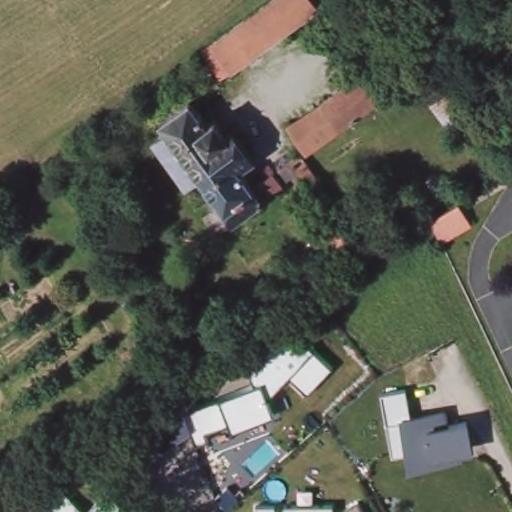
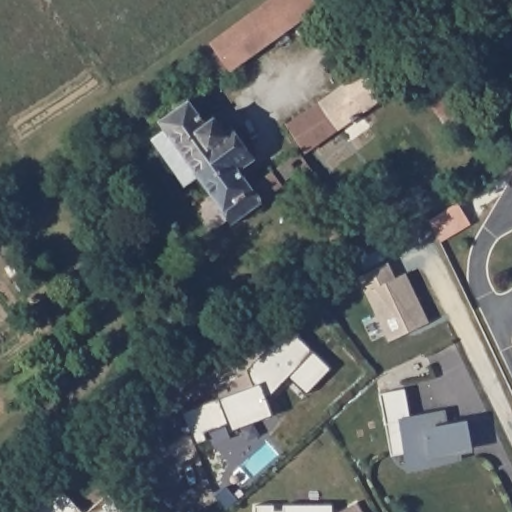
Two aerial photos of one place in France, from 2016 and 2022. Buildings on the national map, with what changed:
unchanged [(264,0),(320,0),(322,2),(229,70),(208,43),(264,0)]
unchanged [(367,66),(386,90),(308,146),(293,124),(367,66)]
unchanged [(436,72),(470,119),(449,136),(417,88),(436,72)]
unchanged [(189,91),(202,109),(212,103),(226,124),(232,120),(242,133),(239,134),(248,148),(233,158),(252,181),(259,174),(268,189),(228,222),(192,174),(183,183),(152,141),(162,135),(149,120),(189,91)]
unchanged [(300,149),(363,231),(368,227),(383,249),(358,267),(280,165),(300,149)]
unchanged [(390,191),(408,213),(386,229),(368,205),(390,191)]
unchanged [(457,196),(470,214),(441,235),(431,215),(457,196)]
new [(388,262),(396,278),(406,273),(429,322),(389,341),(358,276),(388,262)]
unchanged [(189,434),(162,446),(150,445),(140,416),(178,402),(182,414),(221,397),(257,384),(249,366),(290,329),(332,368),(306,393),(290,375),(267,399),(272,414),(231,430),(226,424),(206,430),(209,438),(193,442),(189,434)]
unchanged [(407,387),(411,414),(446,406),(451,422),(468,419),(475,449),(462,453),(463,460),(408,470),(405,454),(390,456),(380,391),(407,387)]
unchanged [(54,479),(82,509),(105,488),(127,512),(36,512),(28,502),(54,479)]
unchanged [(249,512),(250,502),(272,502),(272,508),(278,509),(279,503),(332,504),(332,510),(336,511),(355,500),(362,512),(249,512)]

